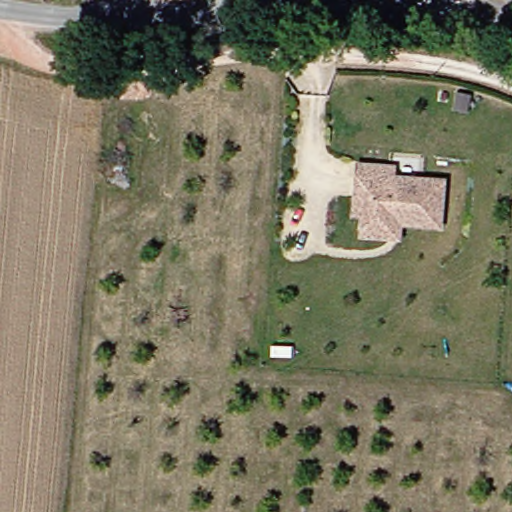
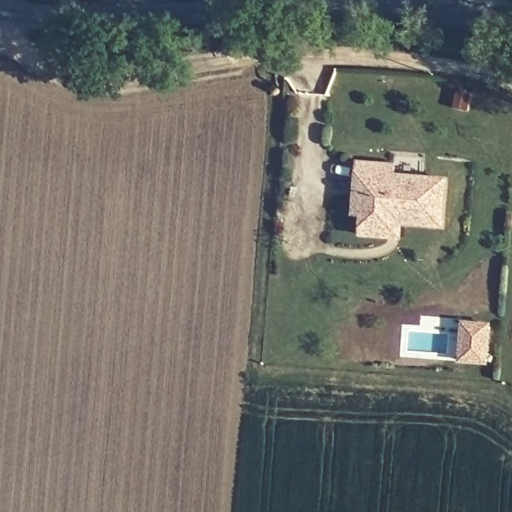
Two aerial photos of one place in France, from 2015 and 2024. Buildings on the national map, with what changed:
unchanged [(361,233),(361,225),(362,214),(354,213),(356,193),(359,161),(396,164),(395,174),(445,178),(441,225),(401,221),(400,236),(361,233)]
new [(490,324),(487,366),(457,365),(460,321),(490,324)]

